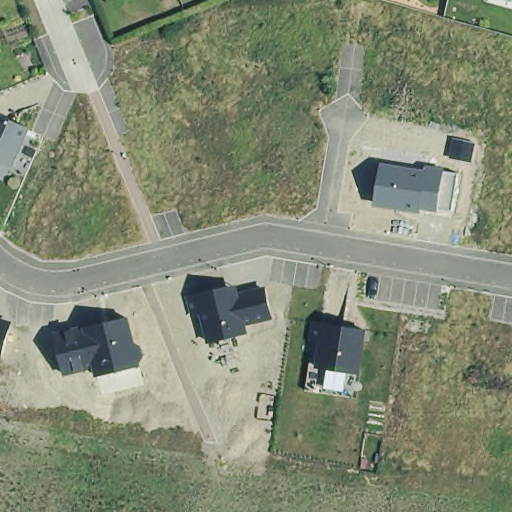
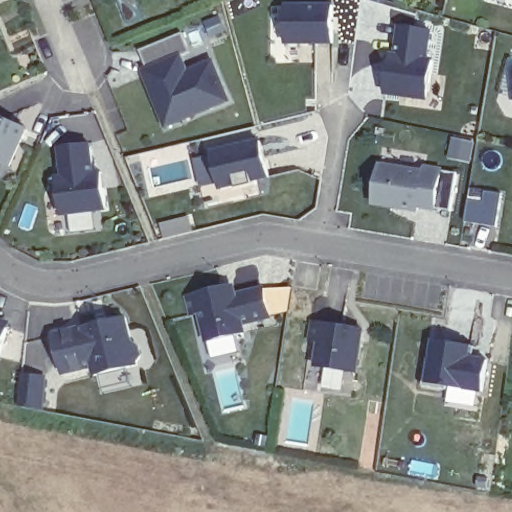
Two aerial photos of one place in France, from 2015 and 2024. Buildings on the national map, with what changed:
new [(340,6),(341,47),(292,45),(291,6),(340,6)]
new [(391,55),(396,55),(401,26),(430,30),(427,60),(433,60),(428,99),(386,93),(391,55)]
new [(165,131),(141,71),(147,69),(139,51),(181,34),(188,52),(182,55),(189,70),(214,60),(232,102),(165,131)]
unchanged [(12,167),(0,162),(0,116),(30,130),(12,167)]
new [(270,144),(278,180),(226,192),(217,155),(270,144)]
new [(62,214),(60,196),(54,197),(51,180),(64,178),(60,148),(89,145),(94,174),(101,174),(106,209),(62,214)]
unchanged [(425,169),(427,165),(445,169),(444,172),(458,174),(452,210),(438,209),(438,212),(421,209),(421,214),(374,206),(382,164),(425,169)]
new [(482,190),(502,192),(497,227),(463,222),(467,200),(480,201),(482,190)]
unchanged [(237,284),(240,291),(266,287),(274,319),(247,325),(249,333),(207,343),(199,315),(191,316),(187,297),(237,284)]
unchanged [(131,317),(135,342),(142,345),(145,358),(140,362),(141,366),(95,377),(92,370),(64,376),(54,333),(131,317)]
unchanged [(1,361),(0,361),(0,318),(12,321),(1,361)]
unchanged [(367,330),(360,375),(316,366),(318,342),(309,340),(312,321),(367,330)]
new [(427,385),(433,340),(476,347),(474,359),(488,361),(484,393),(427,385)]

